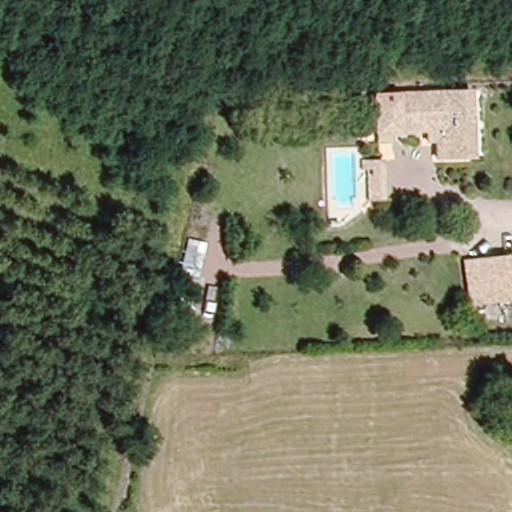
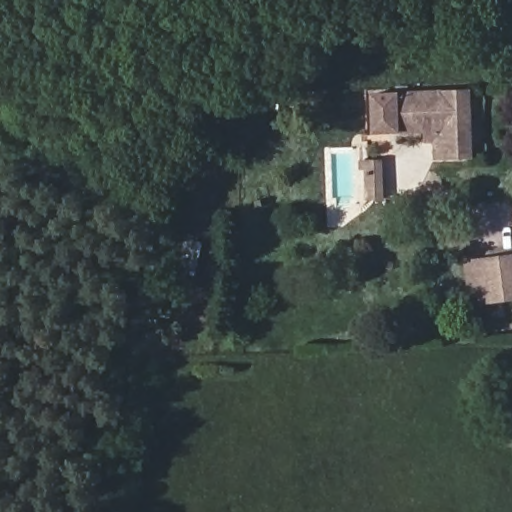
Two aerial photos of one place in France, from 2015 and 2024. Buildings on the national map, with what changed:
unchanged [(425,128),(394,128),(373,128),(373,89),(392,89),(464,91),(463,154),(437,156),(437,139),(426,140),(425,128)]
unchanged [(366,160),(380,159),(383,197),(368,199),(366,160)]
unchanged [(205,282),(190,277),(200,242),(215,247),(205,282)]
unchanged [(480,260),(512,258),(512,299),(481,301),(468,301),(467,260),(480,260)]

